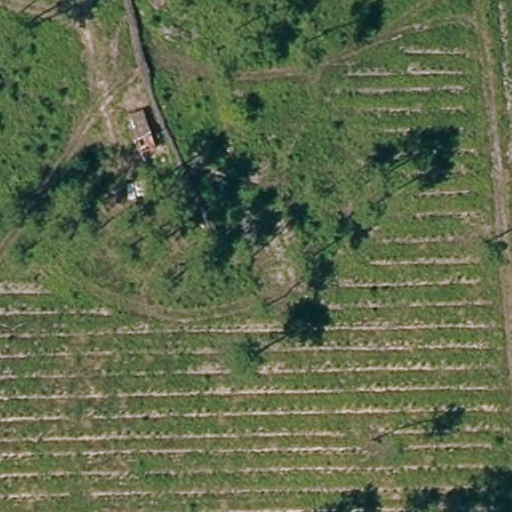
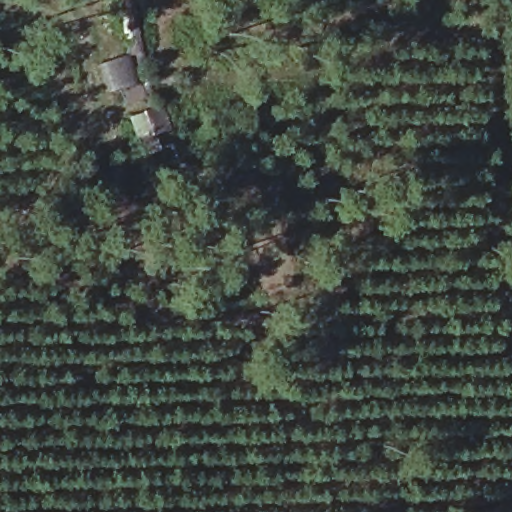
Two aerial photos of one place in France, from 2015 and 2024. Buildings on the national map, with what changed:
unchanged [(156,149),(141,154),(129,116),(144,111),(156,149)]

